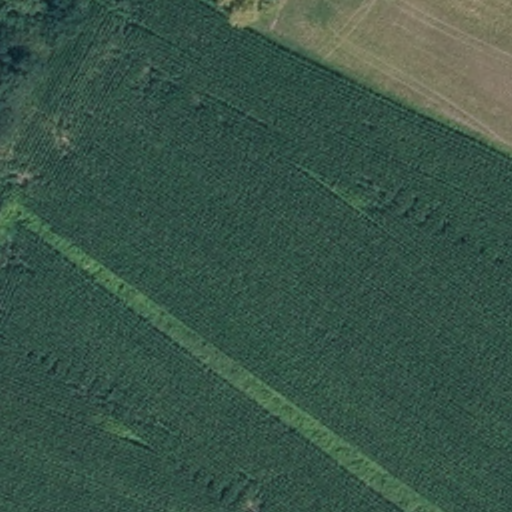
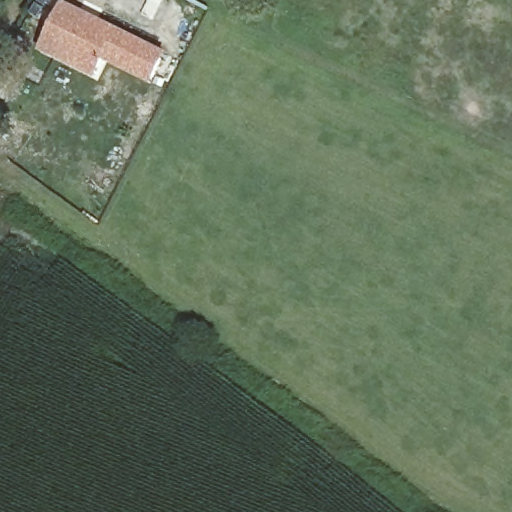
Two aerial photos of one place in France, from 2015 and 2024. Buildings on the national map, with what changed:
new [(62,0),(164,51),(146,84),(104,61),(94,79),(36,51),(62,0)]

